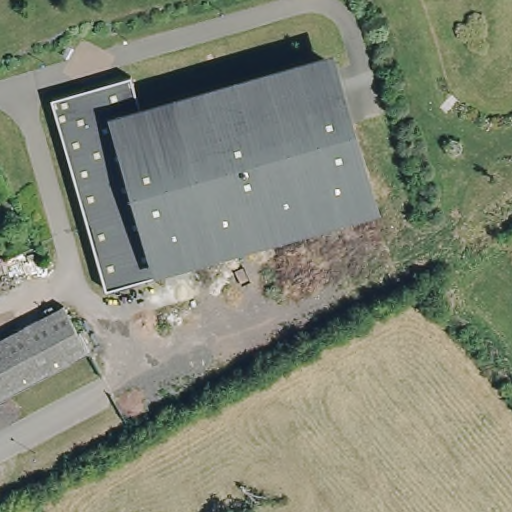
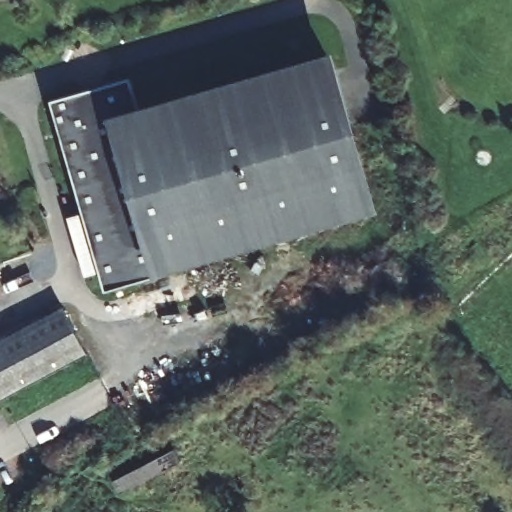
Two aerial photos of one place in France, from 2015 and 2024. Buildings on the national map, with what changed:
unchanged [(372,216),(182,267),(102,289),(47,97),(126,74),(139,117),(330,62),(372,216)]
unchanged [(60,304),(89,350),(0,398),(0,337),(60,304)]

